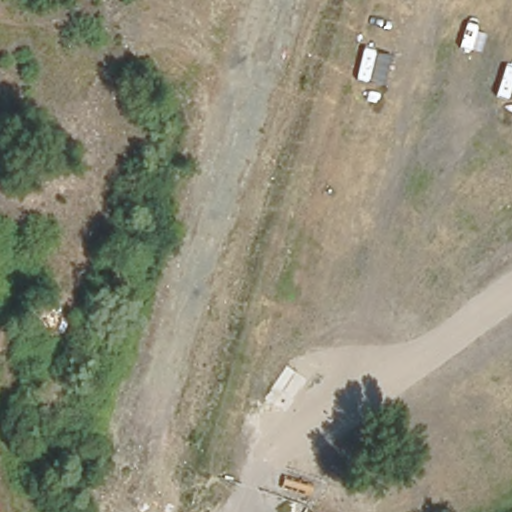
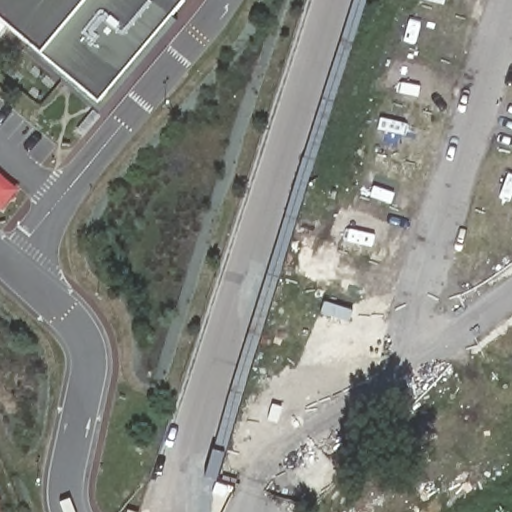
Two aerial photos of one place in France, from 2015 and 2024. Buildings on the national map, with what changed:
new [(0,24),(0,0),(80,0),(35,54),(0,24)]
new [(97,105),(35,54),(80,0),(184,0),(97,105)]

